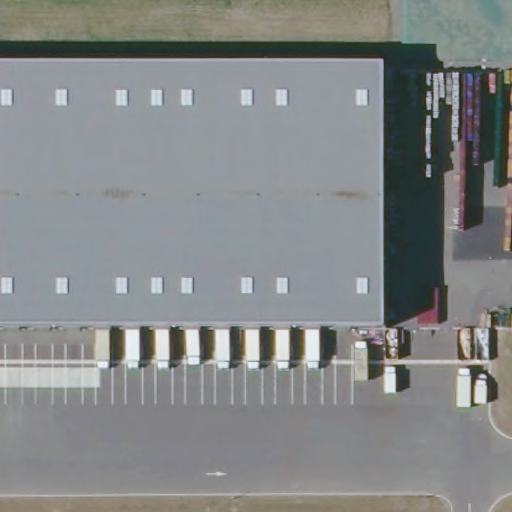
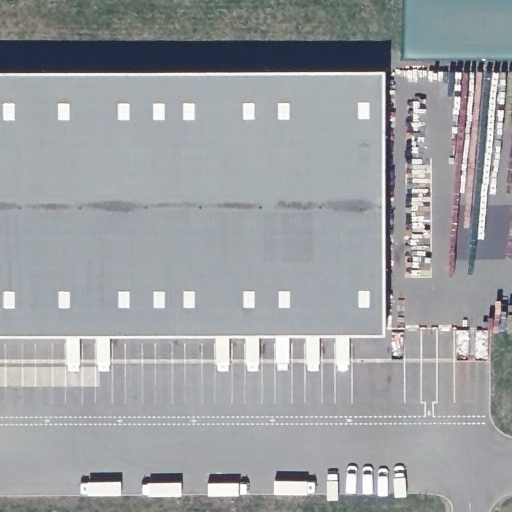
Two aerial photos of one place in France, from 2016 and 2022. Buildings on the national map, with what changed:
unchanged [(0,328),(0,65),(385,65),(385,328),(0,328)]

